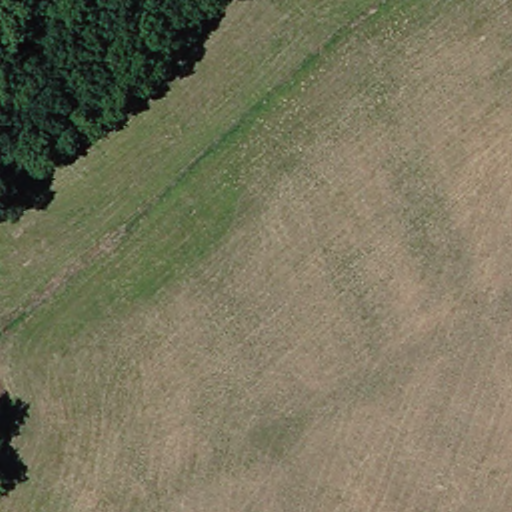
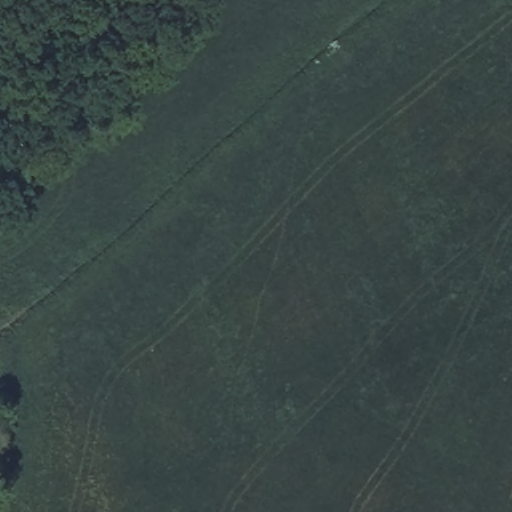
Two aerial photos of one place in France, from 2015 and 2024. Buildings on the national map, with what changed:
[]

